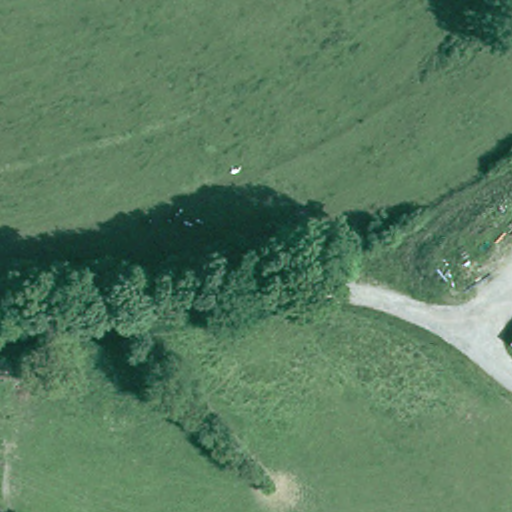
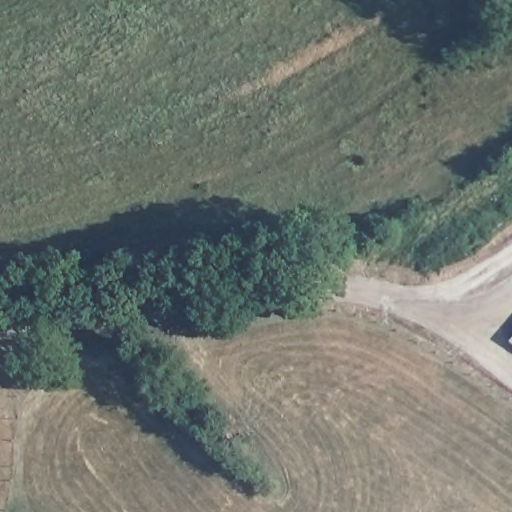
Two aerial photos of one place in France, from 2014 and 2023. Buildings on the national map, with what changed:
unchanged [(507,343),(512,338),(512,348),(507,343)]

